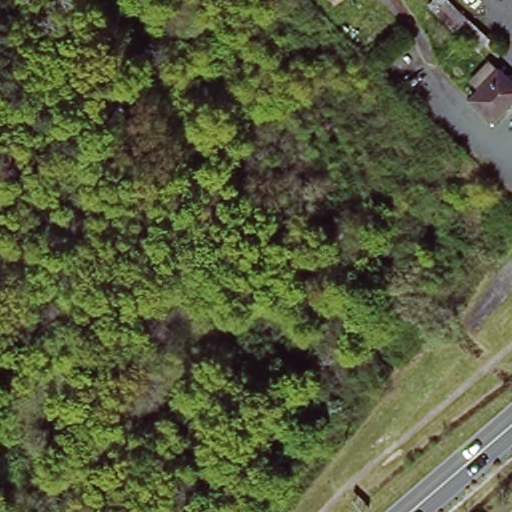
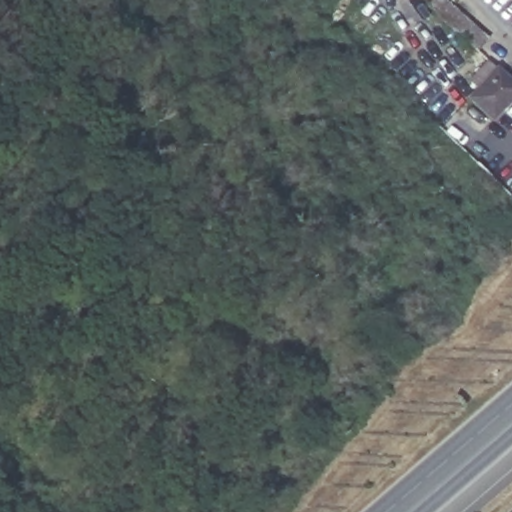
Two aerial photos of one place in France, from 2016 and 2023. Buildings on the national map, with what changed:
unchanged [(453,20),(429,0),(452,0),(463,10),(486,31),(478,41),(453,20)]
unchanged [(472,96),(480,87),(472,79),(494,59),(502,66),(512,76),(512,103),(500,117),(472,96)]
unchanged [(152,223),(163,211),(183,231),(173,243),(152,223)]

